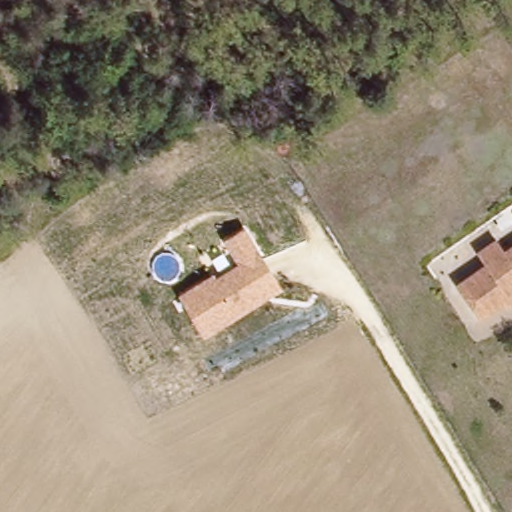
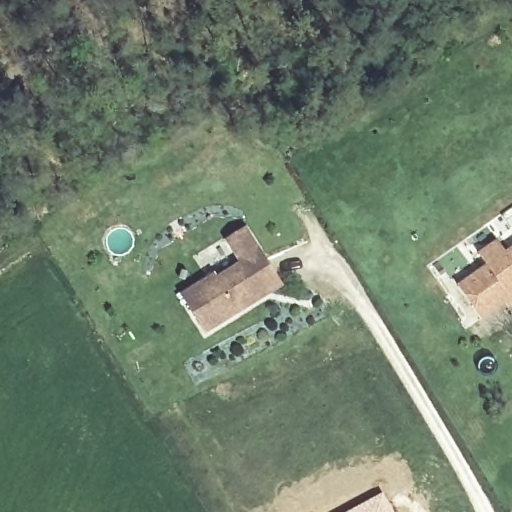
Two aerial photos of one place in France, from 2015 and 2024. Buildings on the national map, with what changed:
unchanged [(282,288),(204,334),(180,294),(216,272),(219,276),(238,264),(223,240),(246,228),(282,288)]
unchanged [(485,320),(461,288),(490,268),(481,255),(501,242),(510,254),(512,253),(512,306),(511,307),(508,304),(485,320)]
new [(381,492),(393,512),(344,512),(381,492)]

